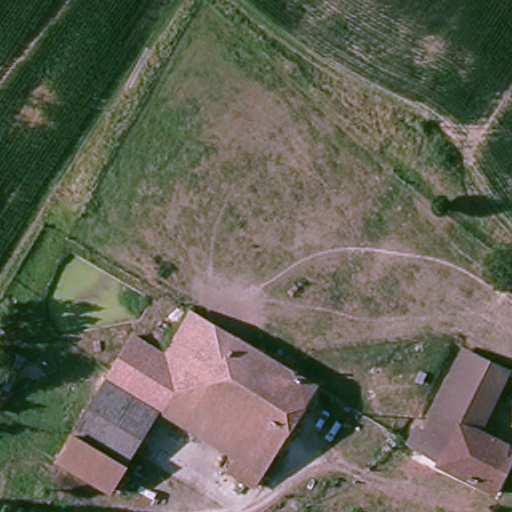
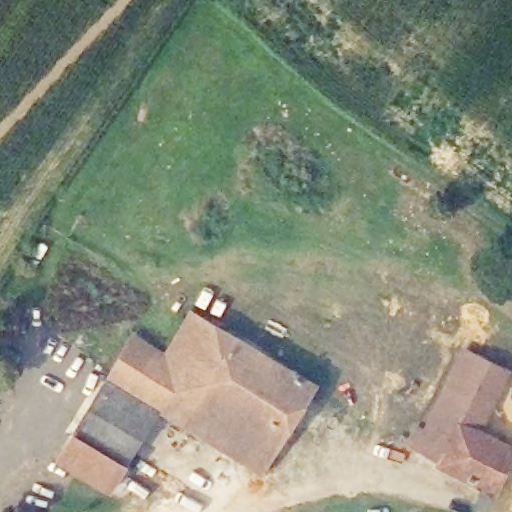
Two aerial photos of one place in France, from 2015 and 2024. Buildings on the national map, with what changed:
unchanged [(232,474),(245,453),(154,400),(105,371),(135,325),(172,347),(195,306),(320,383),(266,467),(254,486),(232,474)]
unchanged [(512,394),(508,392),(486,428),(512,443),(512,469),(497,493),(440,460),(441,456),(409,437),(471,346),(512,371),(512,394)]
unchanged [(154,400),(105,486),(55,456),(105,371),(154,400)]

